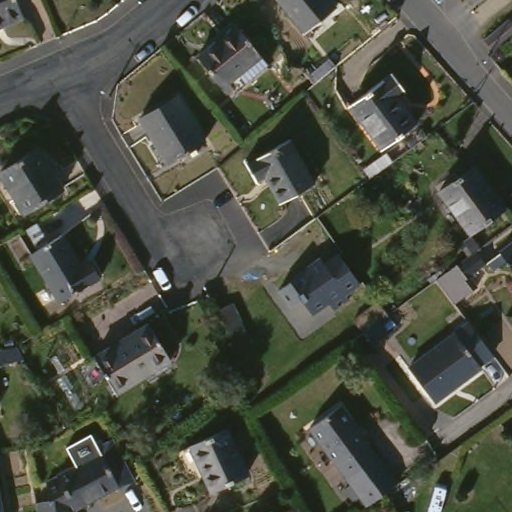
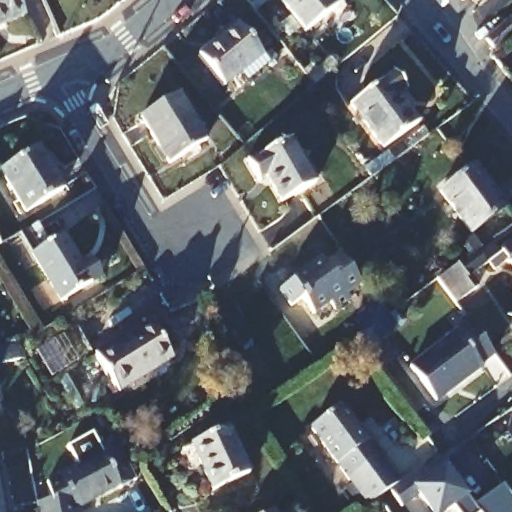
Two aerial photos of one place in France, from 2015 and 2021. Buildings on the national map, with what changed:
unchanged [(27,0),(33,16),(13,25),(12,23),(0,28),(0,0),(27,0)]
unchanged [(315,33),(289,0),(340,0),(346,8),(315,33)]
unchanged [(512,37),(493,53),(485,38),(510,18),(512,20),(512,37)]
unchanged [(251,79),(244,71),(228,84),(201,51),(240,20),(267,52),(274,61),(251,79)]
unchanged [(402,69),(415,86),(407,91),(427,119),(392,145),(359,100),(402,69)]
unchanged [(187,89),(215,136),(179,159),(150,111),(187,89)]
unchanged [(294,135),(320,179),(286,198),(270,171),(261,176),(252,158),(294,135)]
unchanged [(46,145),(71,187),(36,209),(10,166),(46,145)]
unchanged [(395,149),(401,156),(379,173),(373,165),(395,149)]
unchanged [(512,200),(512,206),(479,230),(448,187),(483,161),(512,200)]
unchanged [(8,240),(0,245),(0,220),(8,240)]
unchanged [(89,266),(99,260),(111,277),(70,302),(41,254),(28,233),(47,222),(59,243),(70,236),(89,266)]
unchanged [(500,260),(484,272),(492,283),(469,300),(451,275),(459,269),(480,253),(490,246),(500,260)]
unchanged [(512,263),(509,266),(502,256),(512,248),(512,263)]
unchanged [(363,281),(350,291),(353,296),(333,308),(330,306),(310,316),(303,305),(291,312),(279,290),(294,282),(291,276),(319,257),(323,261),(338,251),(363,281)]
unchanged [(397,327),(374,344),(371,346),(362,334),(353,320),(378,302),(387,315),(397,327)]
unchanged [(232,304),(249,342),(236,349),(218,310),(232,304)]
unchanged [(163,319),(185,355),(164,368),(161,363),(127,384),(108,352),(163,319)]
unchanged [(503,356),(490,366),(491,369),(445,403),(418,367),(477,322),(503,356)]
unchanged [(18,346),(25,359),(0,364),(0,349),(18,346)]
unchanged [(0,402),(0,381),(4,402),(0,402)]
unchanged [(383,451),(404,479),(386,492),(373,502),(352,474),(351,474),(314,423),(345,400),(383,451)]
unchanged [(237,423),(257,469),(220,487),(199,440),(237,423)]
unchanged [(77,441),(99,429),(107,443),(124,475),(80,498),(83,512),(44,512),(40,494),(55,492),(52,471),(84,454),(77,441)]
new [(445,466),(467,499),(473,507),(502,487),(512,500),(512,512),(459,512),(456,507),(448,512),(428,512),(417,497),(401,508),(390,489),(404,479),(438,457),(445,466)]
unchanged [(4,465),(12,512),(0,512),(0,466),(4,465)]
unchanged [(282,505),(286,512),(271,512),(282,505)]

